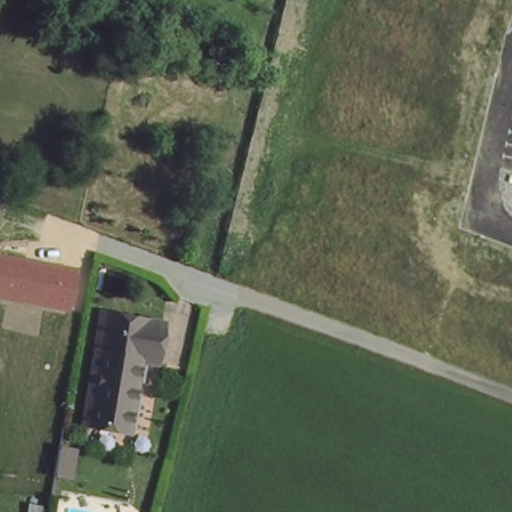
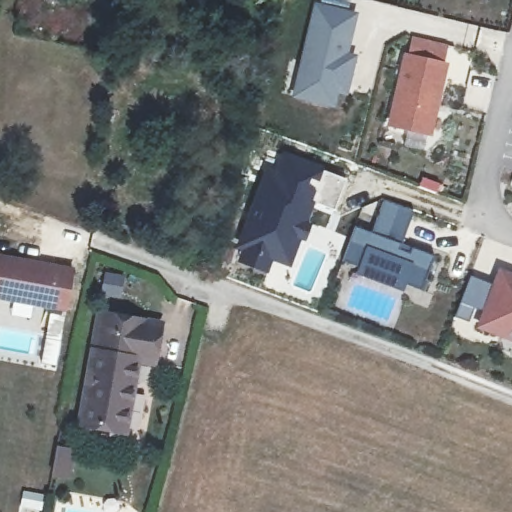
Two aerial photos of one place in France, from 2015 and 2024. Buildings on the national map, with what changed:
new [(349,54),(358,56),(346,96),(338,95),(334,107),(291,97),(314,0),(356,11),(349,54)]
new [(404,54),(444,64),(427,133),(388,124),(404,54)]
new [(266,173),(279,176),(284,157),(344,179),(334,209),(309,201),(288,263),(239,245),(266,173)]
new [(341,261),(354,226),(371,232),(383,200),(412,211),(401,244),(434,255),(421,291),(404,284),(402,291),(356,275),(358,267),(341,261)]
new [(66,312),(0,300),(0,255),(74,267),(66,312)]
new [(498,268),(512,274),(512,342),(474,328),(498,268)]
unchanged [(116,435),(73,425),(96,315),(156,328),(149,365),(131,362),(116,435)]

